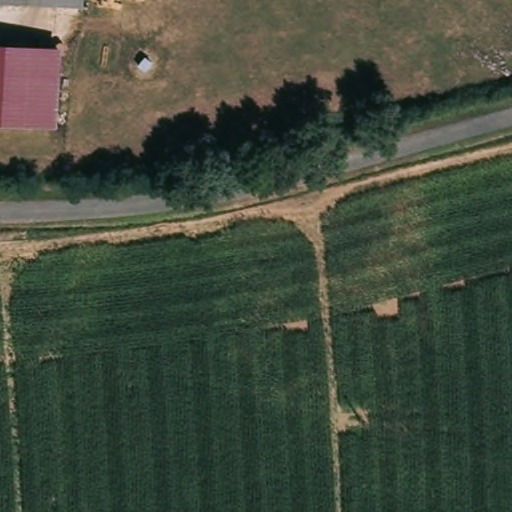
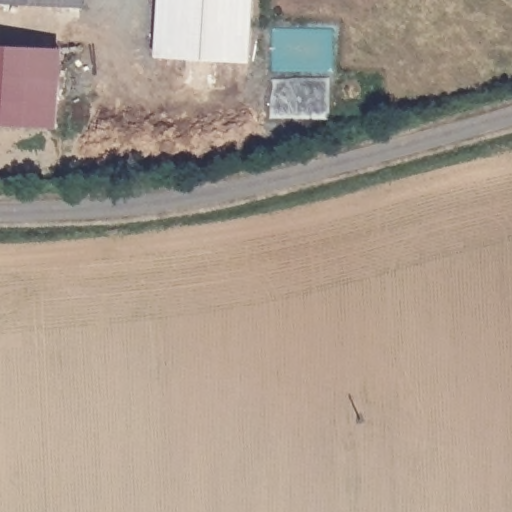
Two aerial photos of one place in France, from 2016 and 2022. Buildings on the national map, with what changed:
unchanged [(82,3),(34,0),(82,0),(82,3)]
new [(247,61),(155,55),(158,0),(251,0),(247,61)]
unchanged [(53,51),(48,126),(0,124),(0,48),(53,51)]

